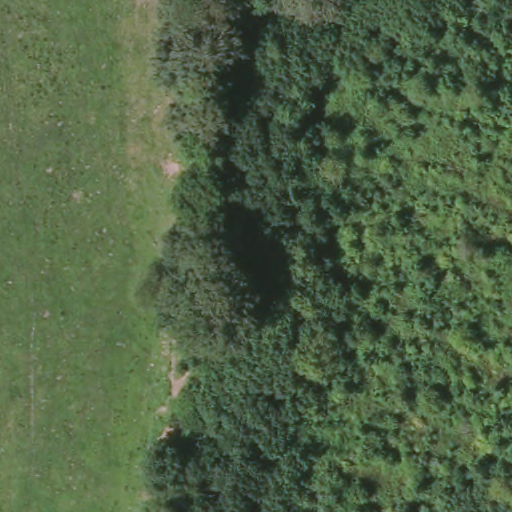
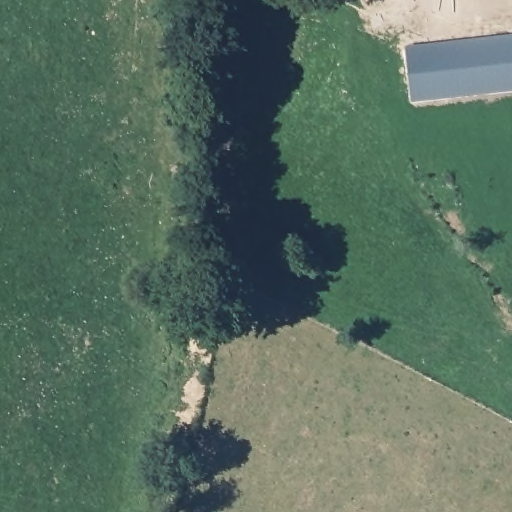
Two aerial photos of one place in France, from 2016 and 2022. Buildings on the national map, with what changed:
new [(512,34),(512,90),(412,101),(406,46),(512,34)]

